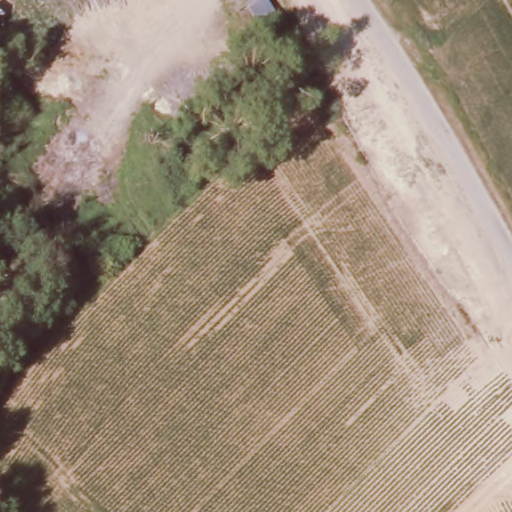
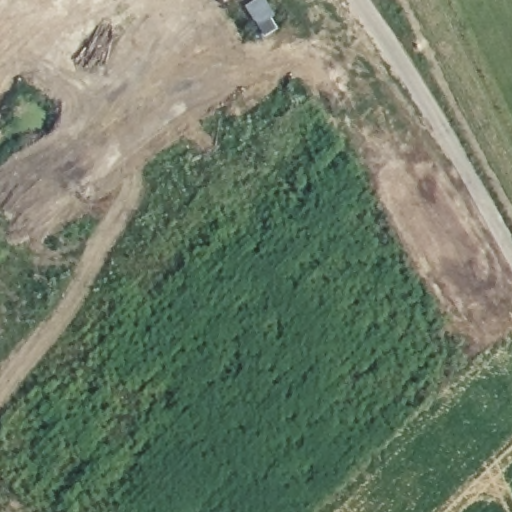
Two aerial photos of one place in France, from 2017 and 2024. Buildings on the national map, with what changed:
unchanged [(255,32),(242,11),(261,0),(265,0),(276,21),(255,32)]

